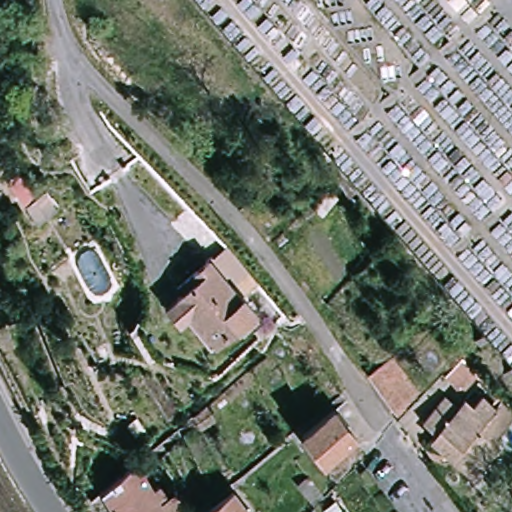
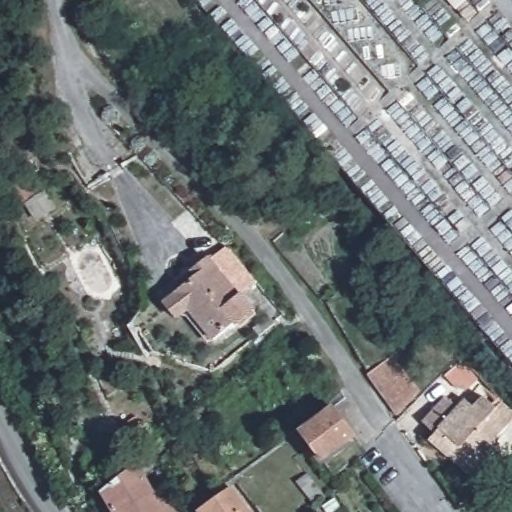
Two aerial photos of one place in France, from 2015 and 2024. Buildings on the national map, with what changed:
unchanged [(238,325),(236,323),(213,340),(189,310),(177,319),(164,304),(181,289),(177,284),(207,258),(239,298),(241,298),(253,312),(238,325)]
unchanged [(459,381),(455,384),(444,372),(462,354),(480,371),(464,385),(459,381)]
unchanged [(393,355),(420,390),(398,414),(369,373),(393,355)]
unchanged [(437,431),(424,419),(446,396),(459,407),(468,399),(480,410),(491,401),(496,405),(500,400),(512,411),(512,418),(495,438),(500,444),(483,462),(472,473),(431,437),(437,431)]
unchanged [(193,413),(206,404),(213,416),(200,424),(193,413)]
unchanged [(355,435),(322,460),(301,432),(333,407),(355,435)]
unchanged [(137,464),(152,491),(160,486),(168,499),(174,495),(186,512),(115,512),(102,492),(137,464)]
unchanged [(198,512),(199,512),(230,489),(247,512),(198,512)]

